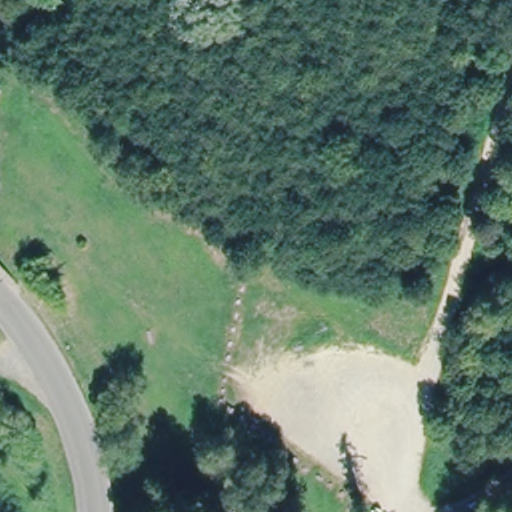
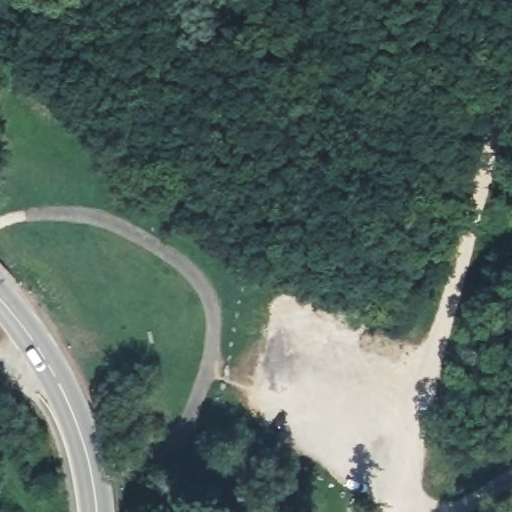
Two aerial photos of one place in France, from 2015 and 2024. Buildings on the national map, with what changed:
[]

